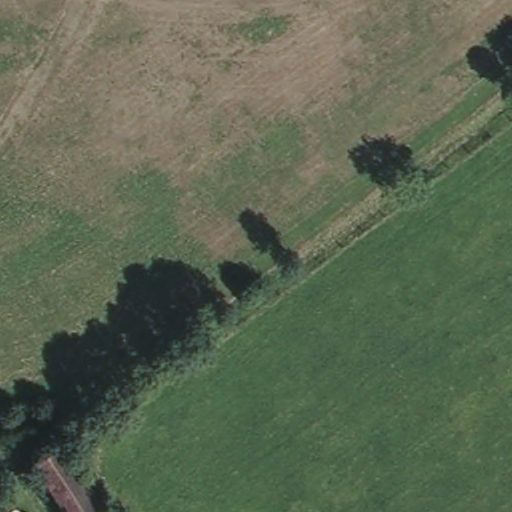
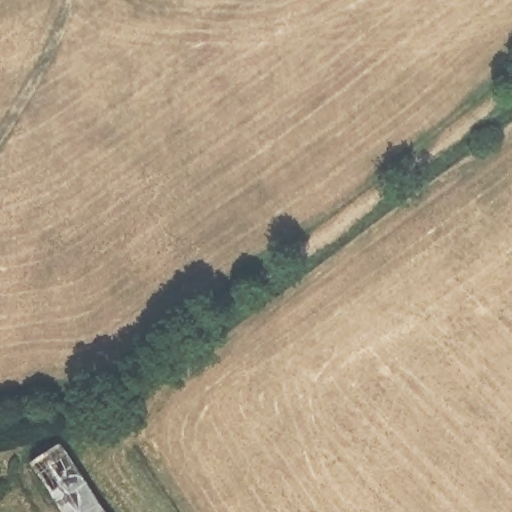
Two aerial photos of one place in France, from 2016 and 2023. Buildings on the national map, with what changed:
unchanged [(31,462),(61,442),(106,512),(64,512),(31,462)]

